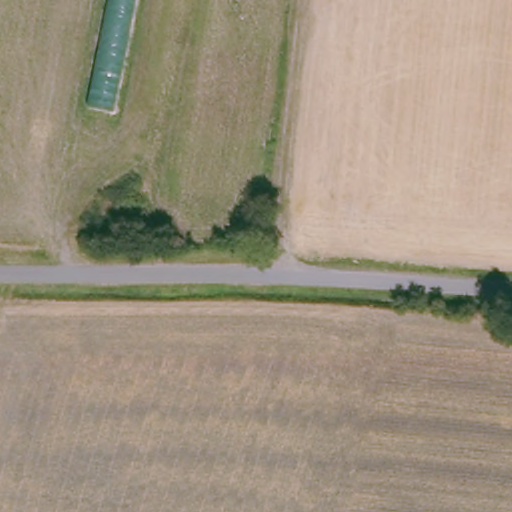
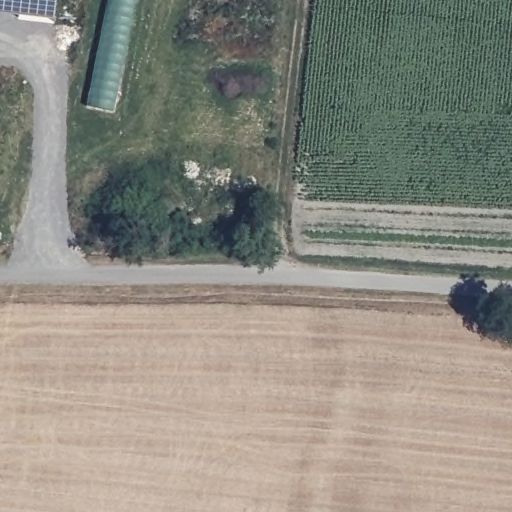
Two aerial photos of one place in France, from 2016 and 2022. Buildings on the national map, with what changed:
new [(53,20),(0,10),(0,0),(57,0),(53,20)]
unchanged [(119,110),(92,104),(112,0),(141,0),(119,110)]

